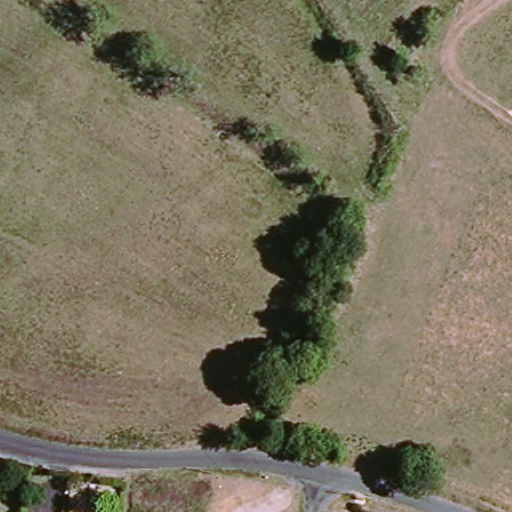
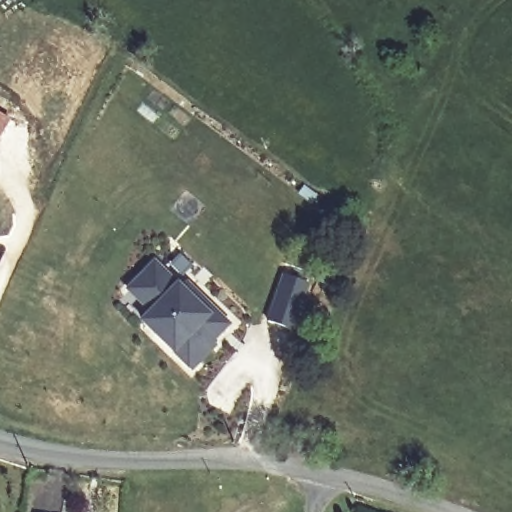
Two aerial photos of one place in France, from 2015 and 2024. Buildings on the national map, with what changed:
new [(12,119),(0,138),(0,111),(12,119)]
new [(146,303),(131,289),(158,261),(185,288),(191,283),(199,291),(232,323),(215,340),(219,344),(195,368),(160,335),(145,321),(154,312),(146,303)]
new [(287,275),(311,283),(295,330),(271,323),(287,275)]

